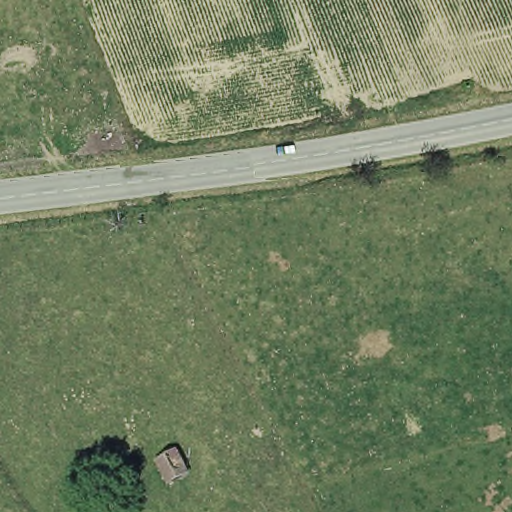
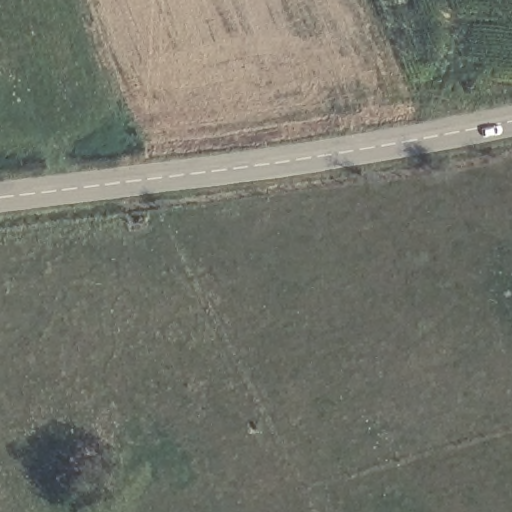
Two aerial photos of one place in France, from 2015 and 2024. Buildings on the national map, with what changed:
unchanged [(192,472),(164,487),(150,457),(175,445),(192,472)]

